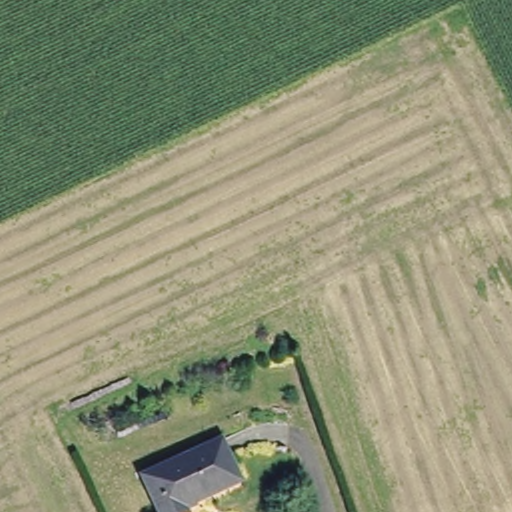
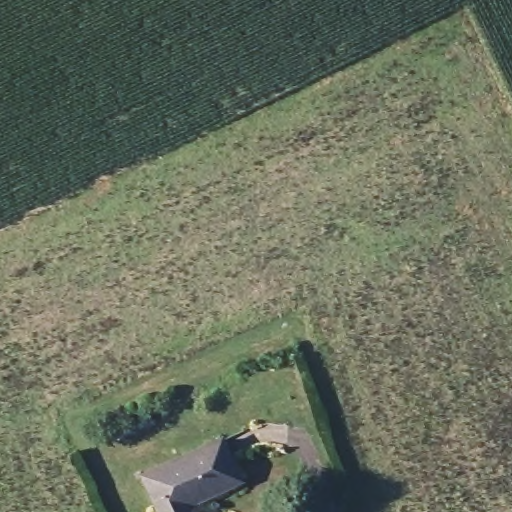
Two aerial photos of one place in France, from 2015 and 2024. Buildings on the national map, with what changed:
unchanged [(240,483),(185,508),(187,512),(158,512),(141,477),(221,440),(240,483)]

